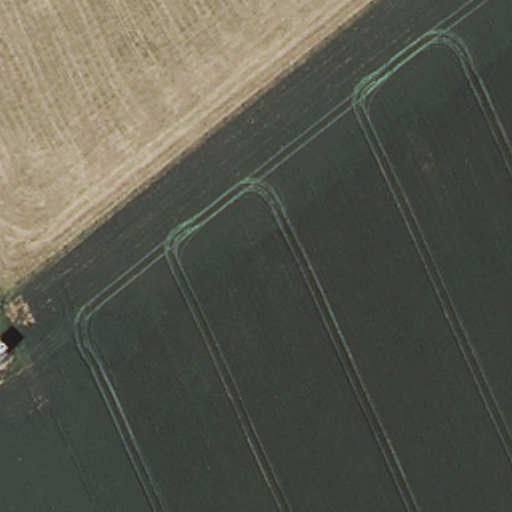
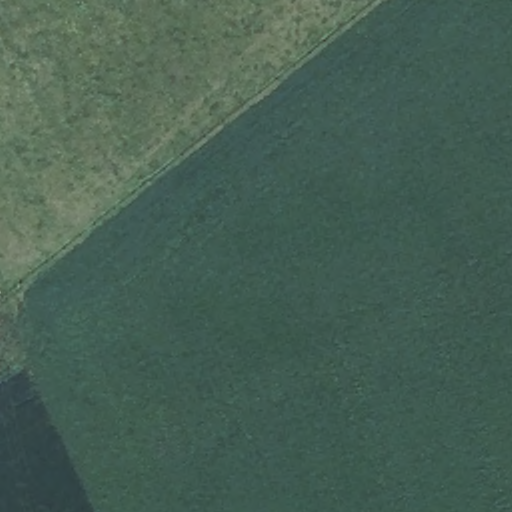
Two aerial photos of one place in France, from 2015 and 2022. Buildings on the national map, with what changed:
[]

